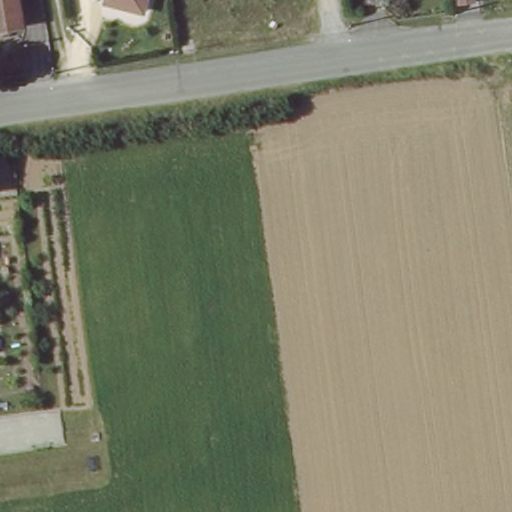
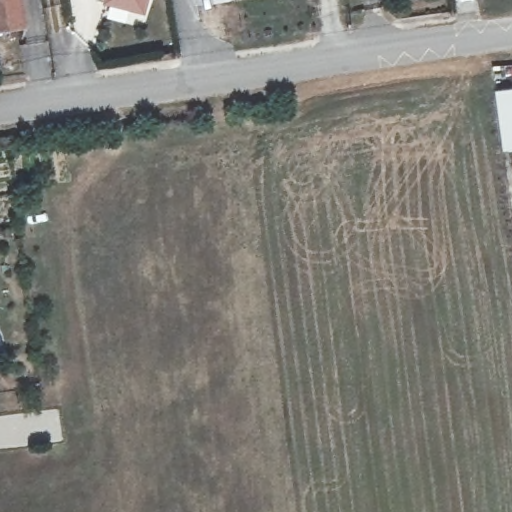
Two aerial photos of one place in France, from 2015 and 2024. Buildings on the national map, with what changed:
unchanged [(0,26),(0,0),(17,0),(21,23),(0,26)]
unchanged [(146,17),(101,6),(102,0),(147,0),(146,17)]
new [(213,4),(212,0),(234,0),(213,4)]
new [(504,152),(496,93),(512,91),(512,151),(504,152)]

